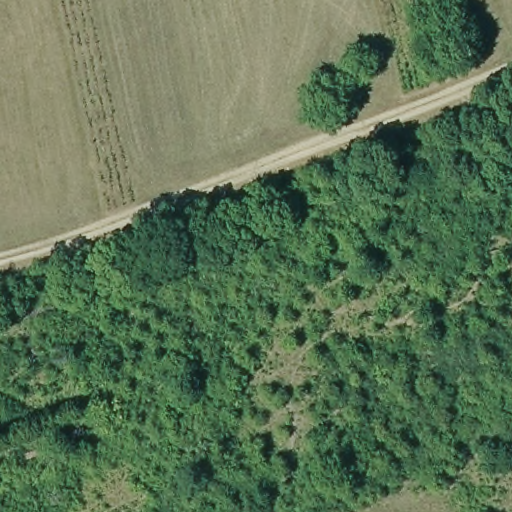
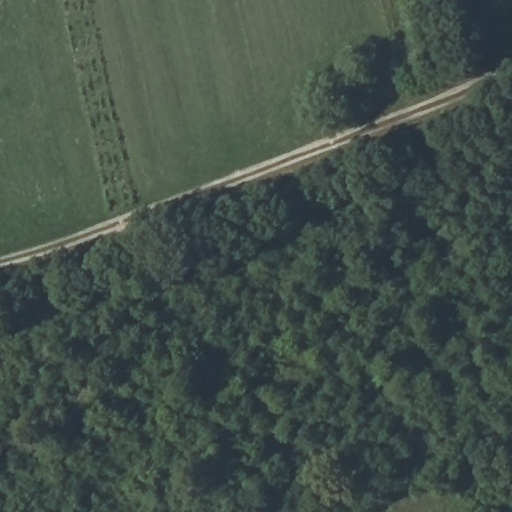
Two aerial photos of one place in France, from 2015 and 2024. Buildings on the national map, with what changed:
[]

